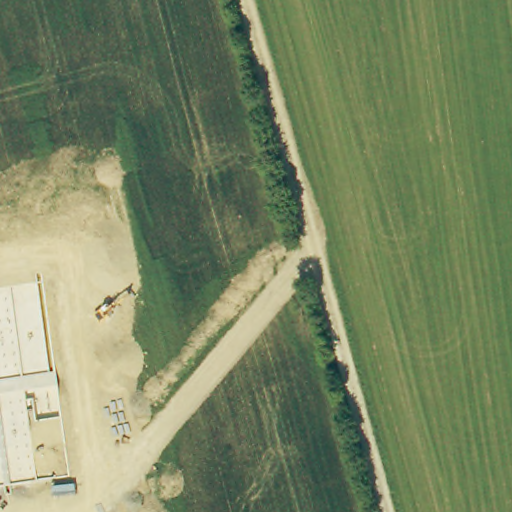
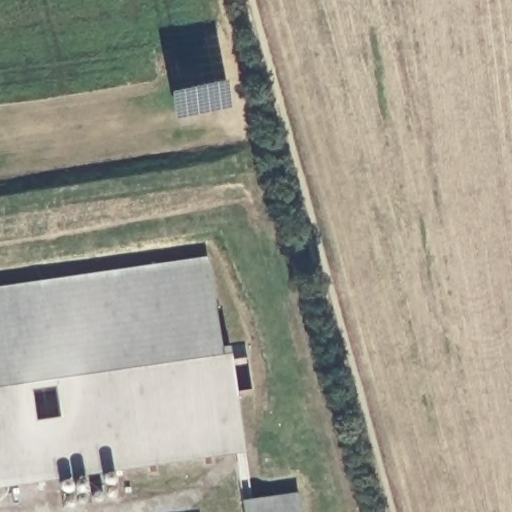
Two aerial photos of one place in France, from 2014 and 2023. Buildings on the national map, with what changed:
new [(206,256),(221,347),(228,346),(244,452),(112,471),(116,498),(58,505),(54,480),(0,487),(0,287),(206,256)]
new [(296,492),(299,512),(243,512),(241,500),(296,492)]

